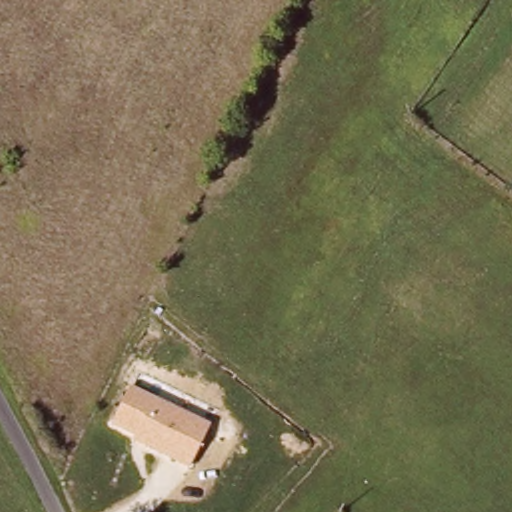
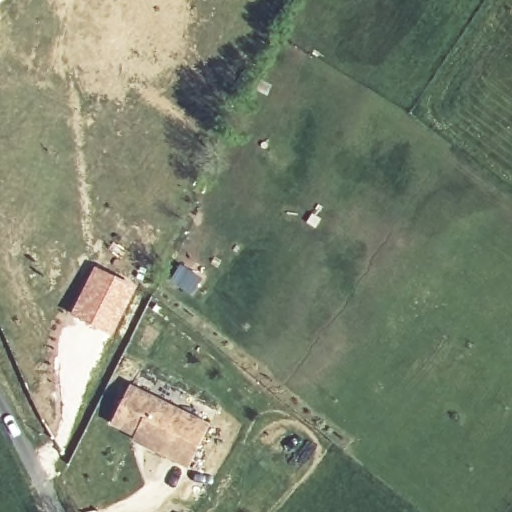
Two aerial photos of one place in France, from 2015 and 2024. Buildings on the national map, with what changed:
new [(180,263),(202,279),(190,296),(167,280),(180,263)]
new [(94,265),(136,286),(111,335),(68,314),(94,265)]
unchanged [(135,437),(110,426),(129,385),(211,424),(189,471),(132,445),(135,437)]

